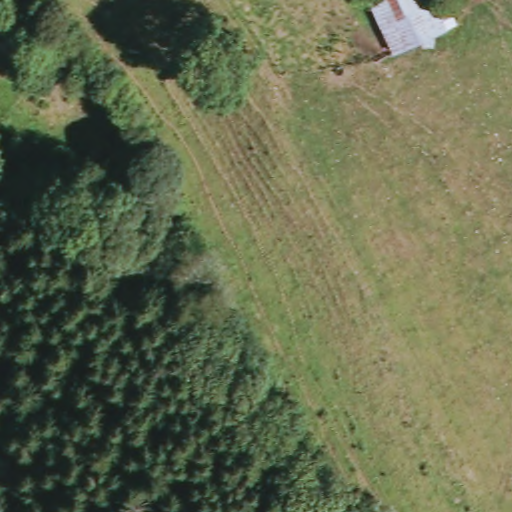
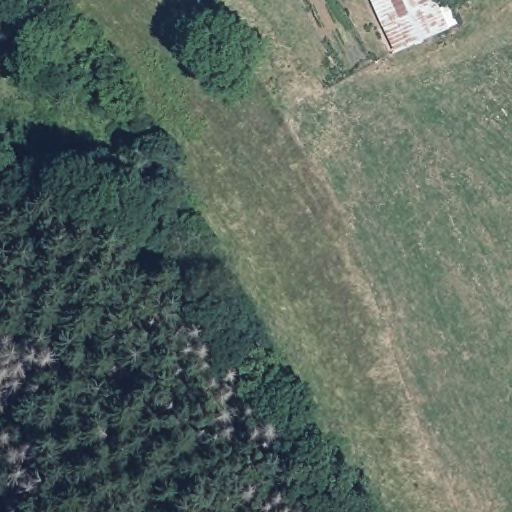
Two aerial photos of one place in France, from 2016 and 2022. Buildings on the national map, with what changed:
unchanged [(395,52),(371,0),(430,0),(445,31),(395,52)]

